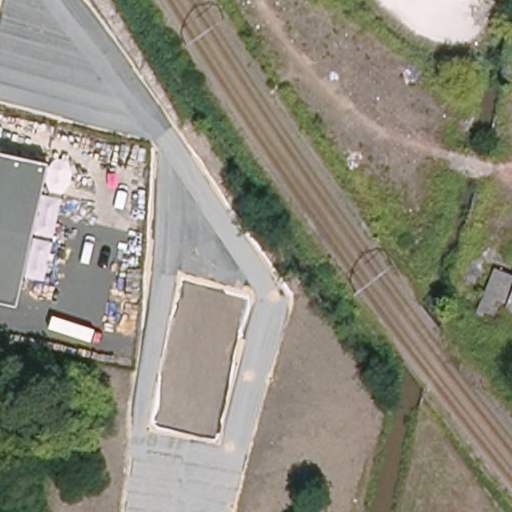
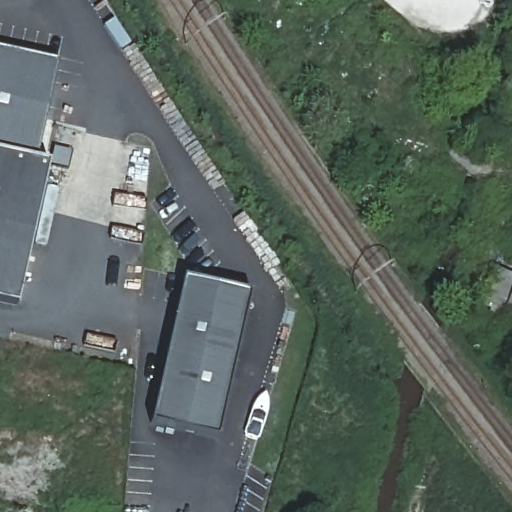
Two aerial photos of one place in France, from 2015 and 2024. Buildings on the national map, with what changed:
new [(57,60),(34,160),(0,153),(0,48),(57,60)]
unchanged [(512,58),(512,64),(510,64),(512,58)]
unchanged [(50,164),(19,307),(0,303),(0,153),(50,164)]
unchanged [(494,268),(512,276),(512,327),(476,312),(494,268)]
new [(218,436),(150,421),(184,276),(251,291),(218,436)]

